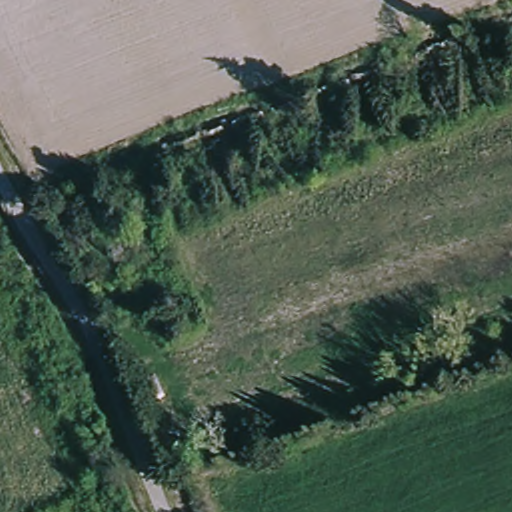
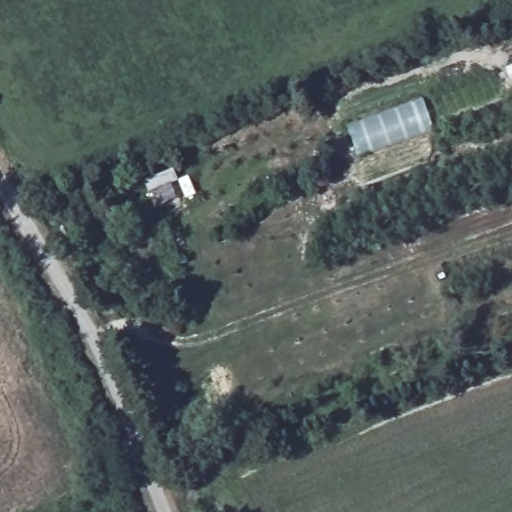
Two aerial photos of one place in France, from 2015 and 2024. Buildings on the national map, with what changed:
new [(422,99),(433,126),(359,155),(348,125),(422,99)]

